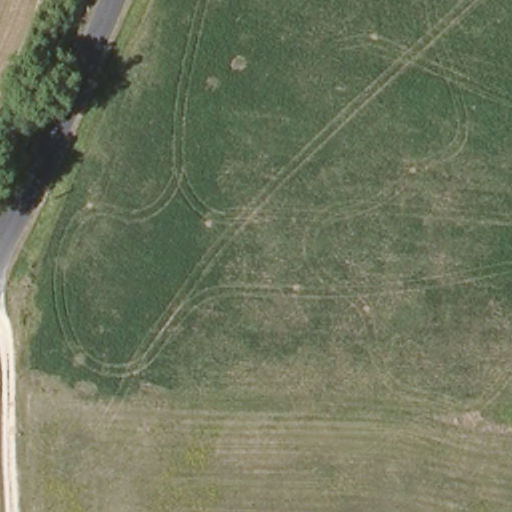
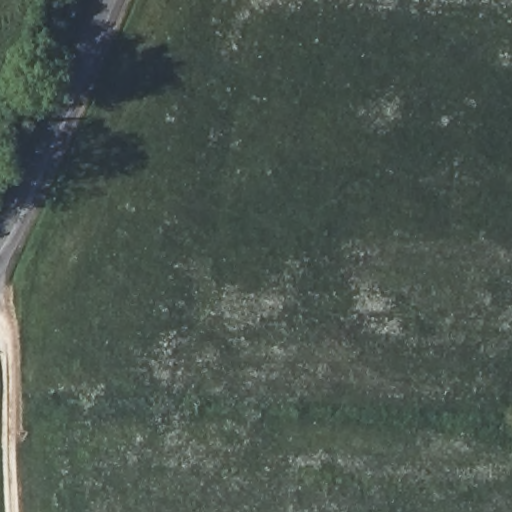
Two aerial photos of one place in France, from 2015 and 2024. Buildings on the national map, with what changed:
[]

